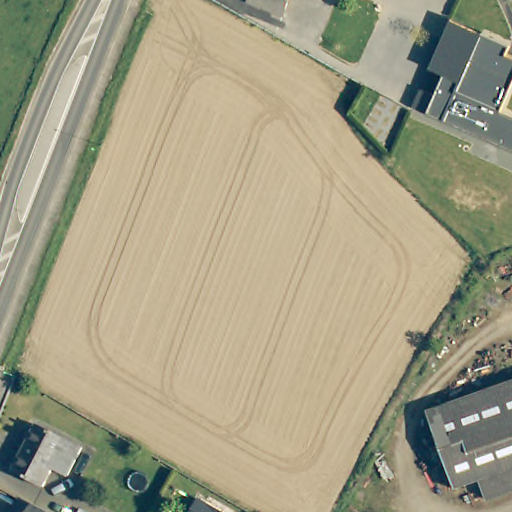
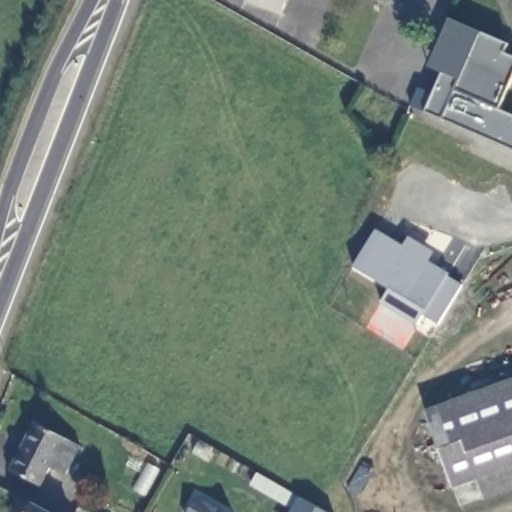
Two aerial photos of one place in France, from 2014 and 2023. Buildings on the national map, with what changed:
unchanged [(282,15),(243,1),(243,0),(287,0),(282,15)]
unchanged [(505,54),(512,57),(512,82),(500,110),(512,115),(512,149),(427,112),(411,106),(418,88),(433,94),(443,73),(429,67),(449,19),(508,44),(505,54)]
new [(402,246),(407,236),(424,246),(433,251),(427,261),(447,273),(447,276),(462,285),(437,324),(422,315),(417,324),(380,302),(388,288),(352,266),(375,229),(402,246)]
unchanged [(480,484),(453,492),(427,411),(512,383),(512,493),(486,502),(480,484)]
unchanged [(59,477),(44,469),(33,488),(4,472),(30,426),(74,450),(59,477)]
unchanged [(6,493),(42,512),(6,512),(0,509),(0,504),(6,493)]
new [(326,512),(292,512),(301,497),(326,512)]
unchanged [(65,512),(67,507),(78,512),(65,512)]

